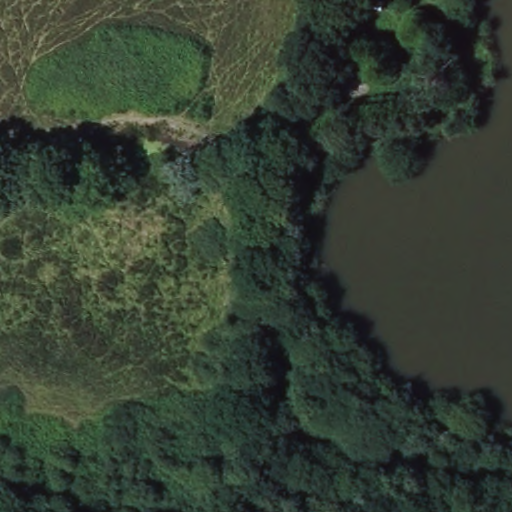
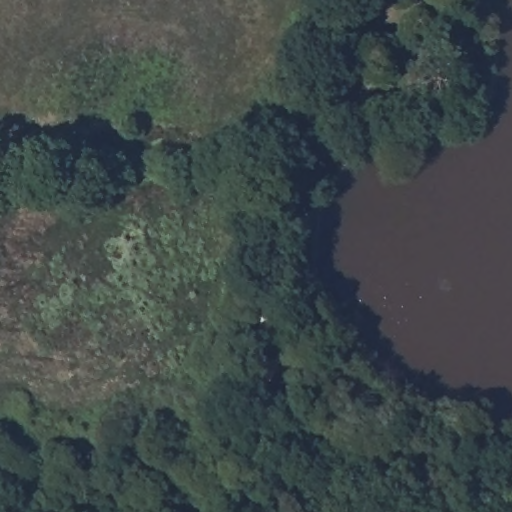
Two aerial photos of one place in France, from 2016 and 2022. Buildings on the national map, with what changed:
unchanged [(333,49),(345,53),(337,90),(325,87),(333,49)]
unchanged [(262,317),(274,319),(271,340),(258,340),(262,317)]

